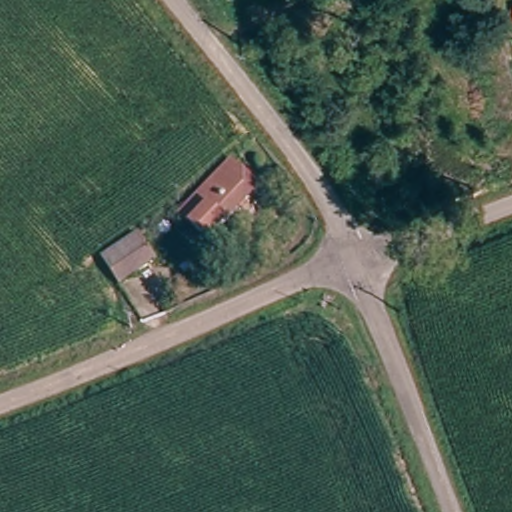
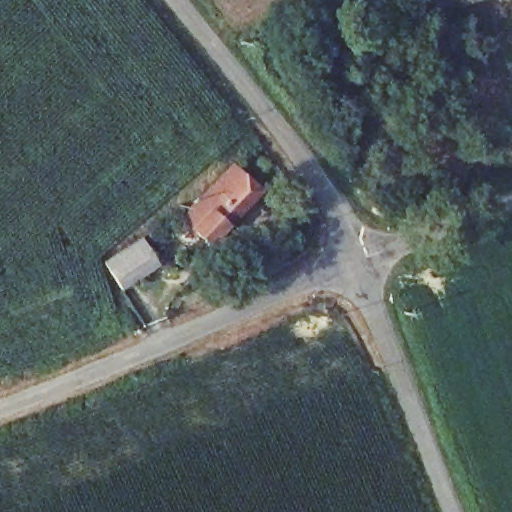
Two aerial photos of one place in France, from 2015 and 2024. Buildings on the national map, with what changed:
unchanged [(198,200),(236,166),(262,194),(226,226),(208,243),(192,225),(182,215),(198,200)]
unchanged [(257,255),(244,267),(227,249),(241,236),(257,255)]
unchanged [(158,266),(119,287),(114,277),(104,259),(143,237),(148,247),(158,266)]

